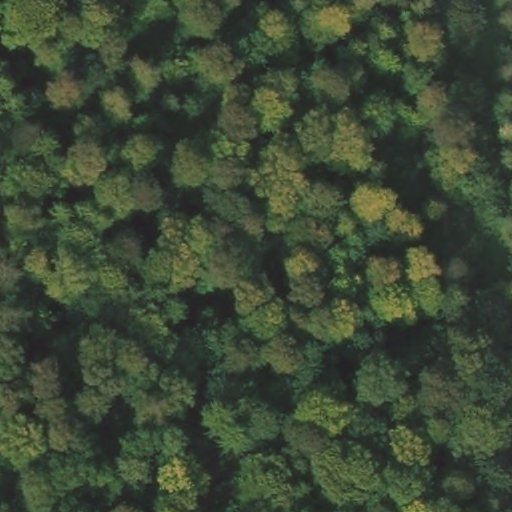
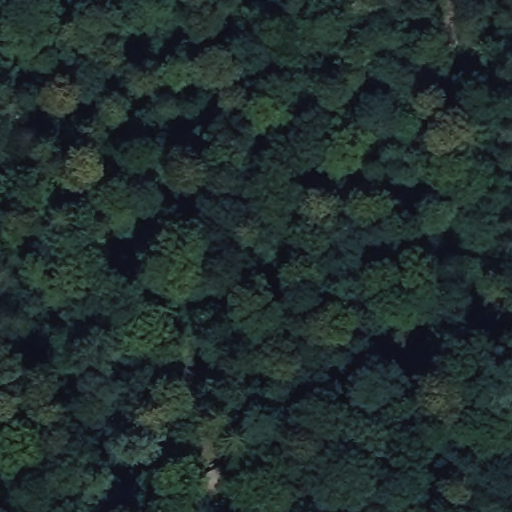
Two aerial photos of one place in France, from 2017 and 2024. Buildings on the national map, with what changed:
unchanged [(212,507),(257,477),(271,499),(251,512),(215,512),(212,507)]

